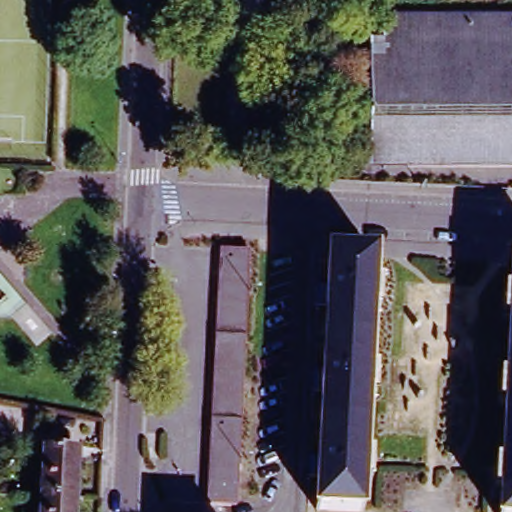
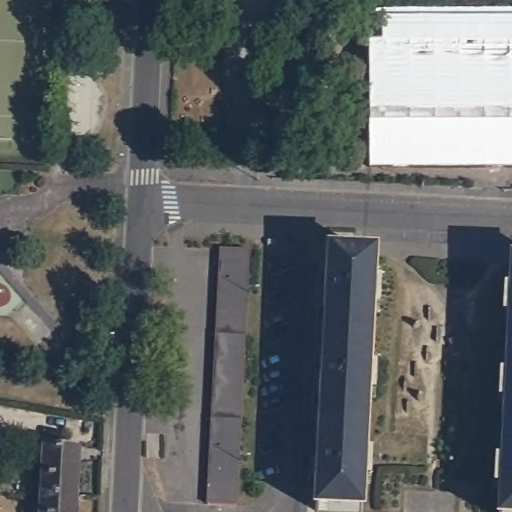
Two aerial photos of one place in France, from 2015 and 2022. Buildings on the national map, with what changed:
unchanged [(215,4),(187,6),(186,0),(241,0),(242,2),(215,4)]
unchanged [(372,174),(371,60),(385,60),(385,33),(512,32),(512,171),(372,174)]
unchanged [(235,505),(207,503),(220,249),(248,251),(235,505)]
unchanged [(318,459),(322,392),(312,392),(314,374),(322,375),(326,307),(317,307),(318,288),(327,289),(329,255),(376,258),(363,512),(334,512),(316,511),(317,477),(309,476),(309,458),(318,459)]
unchanged [(508,268),(512,269),(512,512),(496,512),(508,268)]
unchanged [(44,449),(62,450),(77,450),(77,457),(75,498),(41,496),(44,449)]
unchanged [(41,496),(75,498),(74,512),(40,512),(41,496)]

